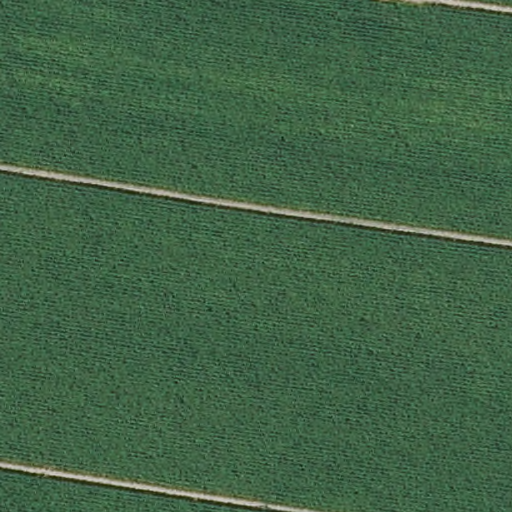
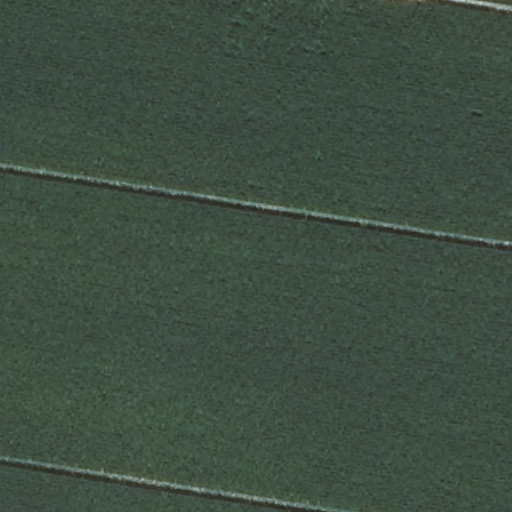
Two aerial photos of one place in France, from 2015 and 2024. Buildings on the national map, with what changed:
[]

